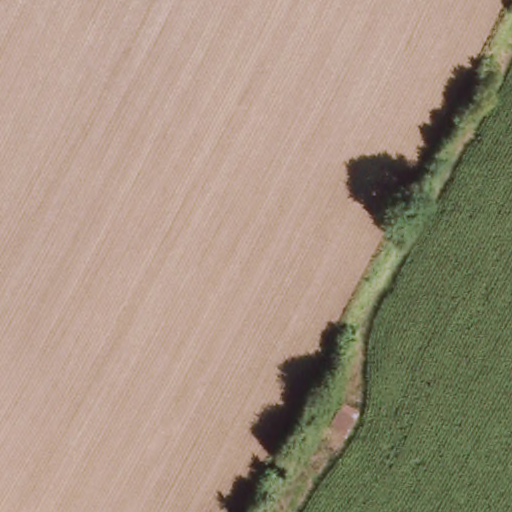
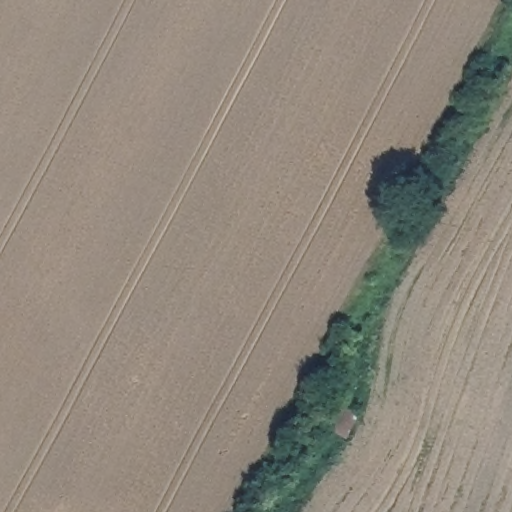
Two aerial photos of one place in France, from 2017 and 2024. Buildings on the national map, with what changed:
unchanged [(348,436),(327,427),(340,401),(360,410),(348,436)]

